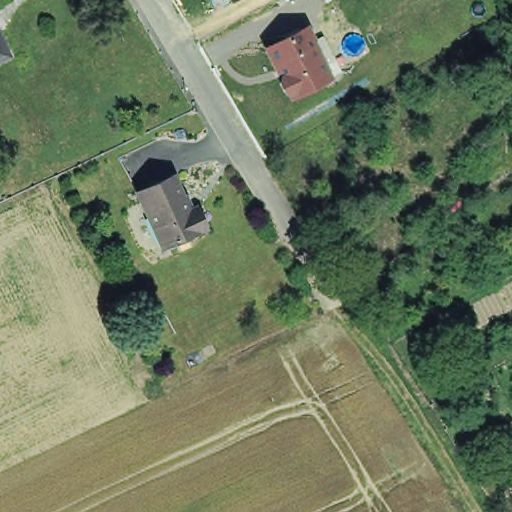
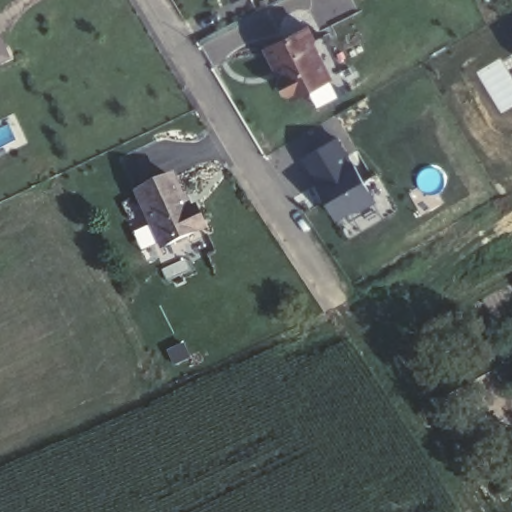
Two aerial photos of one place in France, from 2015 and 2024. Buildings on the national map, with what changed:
unchanged [(308,23),(332,76),(285,95),(261,44),(308,23)]
unchanged [(7,55),(0,58),(0,40),(7,55)]
new [(335,137),(350,163),(351,162),(372,199),(355,209),(353,205),(333,216),(315,184),(320,181),(305,155),(335,137)]
unchanged [(135,194),(170,177),(186,211),(193,208),(203,229),(161,249),(135,194)]

